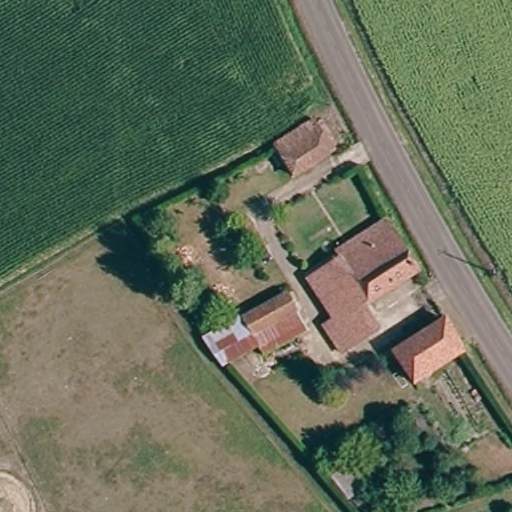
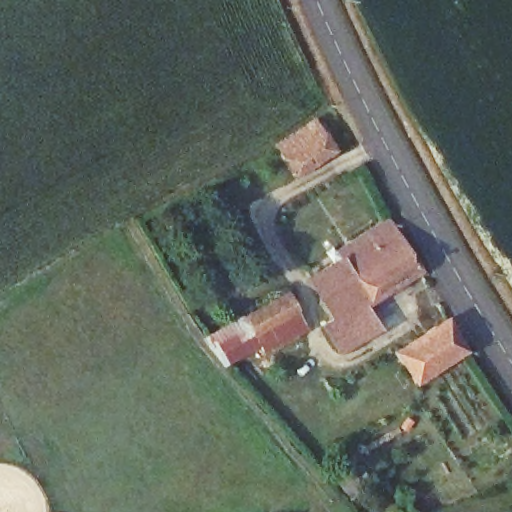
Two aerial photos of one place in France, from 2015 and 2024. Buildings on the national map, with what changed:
unchanged [(291,174),(270,136),(325,104),(337,125),(345,121),(349,130),(341,134),(346,143),(291,174)]
unchanged [(364,244),(359,235),(370,229),(375,238),(398,226),(421,265),(363,300),(377,328),(366,334),(326,264),(364,244)]
unchanged [(340,347),(331,329),(337,326),(310,273),(326,264),(366,334),(361,337),(340,347)]
unchanged [(286,292),(296,310),(306,328),(247,360),(242,352),(221,364),(204,336),(245,315),(286,292)]
unchanged [(411,377),(408,371),(392,345),(451,314),(470,344),(411,377)]

